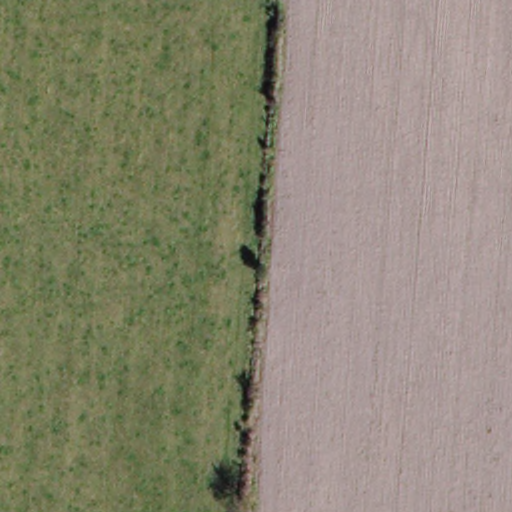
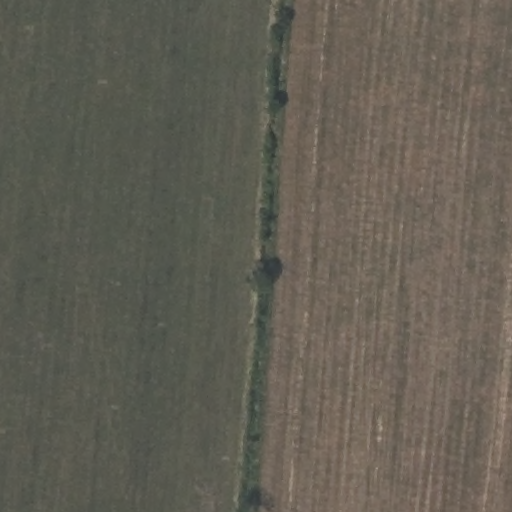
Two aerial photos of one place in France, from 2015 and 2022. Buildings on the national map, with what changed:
[]

